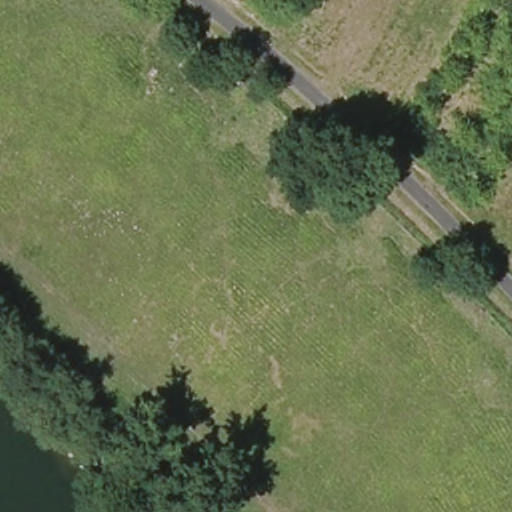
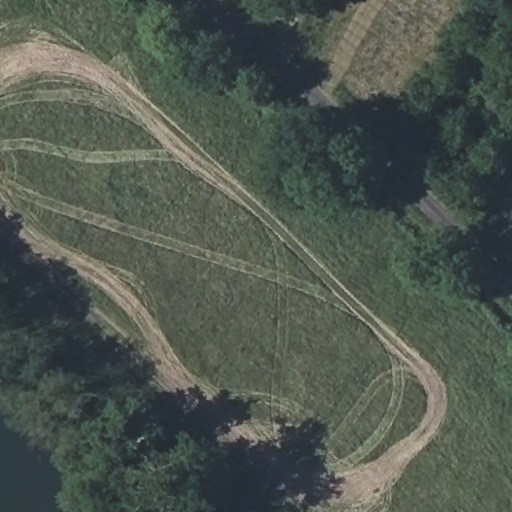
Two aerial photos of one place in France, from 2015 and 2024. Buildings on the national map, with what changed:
unchanged [(89,452),(100,462),(88,472),(79,462),(89,452)]

